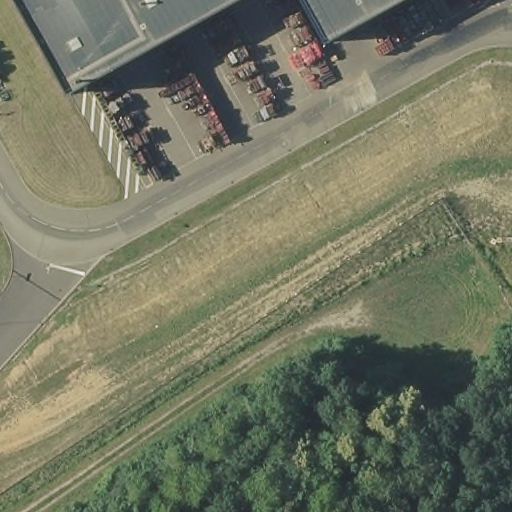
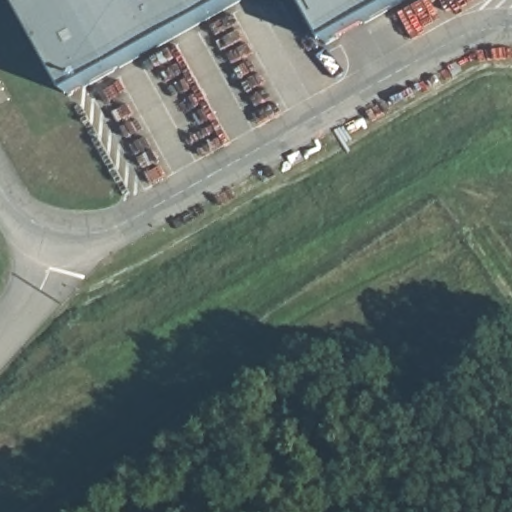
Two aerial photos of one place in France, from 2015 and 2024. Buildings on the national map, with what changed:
unchanged [(69,96),(16,0),(242,0),(69,96)]
unchanged [(326,45),(302,0),(407,0),(326,45)]

